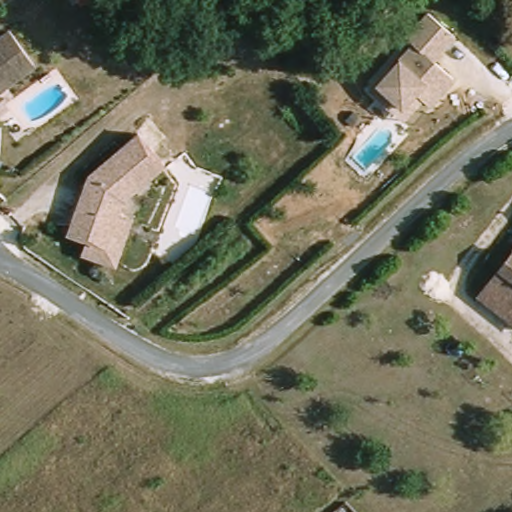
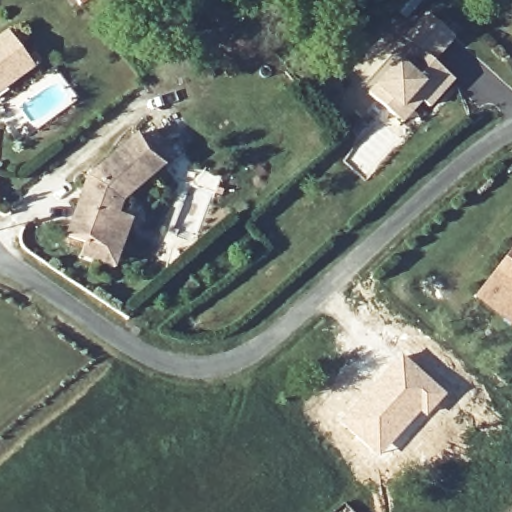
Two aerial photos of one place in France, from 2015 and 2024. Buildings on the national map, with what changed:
new [(73,0),(82,0),(76,5),(73,0)]
unchanged [(454,36),(433,60),(456,80),(431,106),(421,100),(403,120),(371,91),(398,61),(414,44),(405,36),(427,12),(454,36)]
unchanged [(14,34),(32,69),(0,85),(0,41),(14,34)]
unchanged [(86,246),(90,233),(72,227),(93,167),(143,125),(170,157),(128,192),(124,204),(138,209),(121,258),(86,246)]
unchanged [(512,253),(512,312),(483,290),(512,253)]
new [(401,353),(446,395),(424,419),(419,415),(379,456),(338,417),(401,353)]

